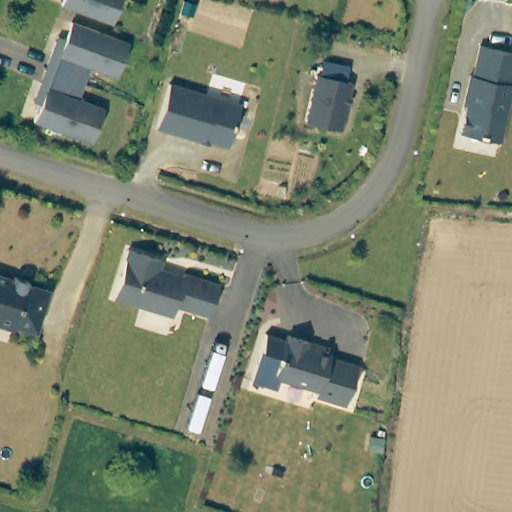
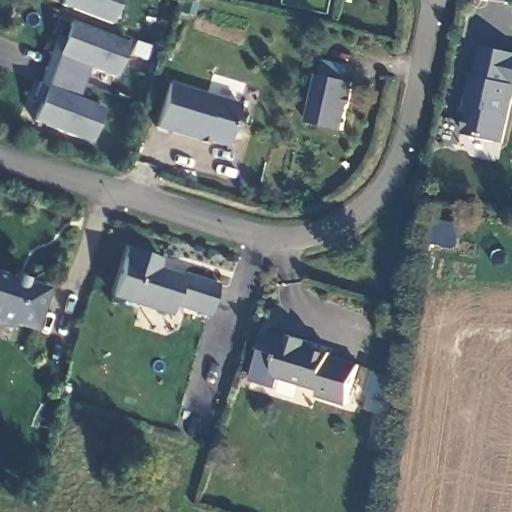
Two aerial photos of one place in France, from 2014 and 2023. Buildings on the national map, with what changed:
unchanged [(111,19),(63,0),(119,0),(111,19)]
unchanged [(196,4),(193,15),(181,12),(184,0),(196,4)]
unchanged [(35,91),(39,79),(51,47),(55,39),(57,30),(65,33),(70,18),(128,40),(115,73),(90,64),(78,95),(104,105),(91,139),(32,116),(39,100),(32,98),(35,91)]
unchanged [(512,85),(512,90),(500,143),(462,134),(468,105),(465,105),(471,75),(475,76),(481,46),(512,53),(512,83),(511,85),(512,85)]
unchanged [(307,132),(317,84),(322,85),(325,70),(349,75),(346,90),(353,91),(343,140),(307,132)]
unchanged [(229,147),(202,139),(198,140),(156,127),(170,83),(242,106),(229,147)]
unchanged [(172,302),(171,305),(167,308),(160,308),(155,305),(154,302),(154,300),(154,297),(149,295),(143,298),(141,303),(112,295),(126,246),(160,257),(157,266),(182,274),(183,272),(219,282),(209,313),(172,302)]
unchanged [(7,275),(6,277),(10,278),(12,273),(26,278),(25,282),(29,283),(29,282),(46,287),(34,329),(12,322),(11,326),(0,323),(0,272),(7,275)]
unchanged [(304,343),(328,351),(327,355),(356,363),(344,403),(314,393),(316,387),(276,375),(273,368),(283,336),(285,337),(286,332),(305,338),(304,343)]

